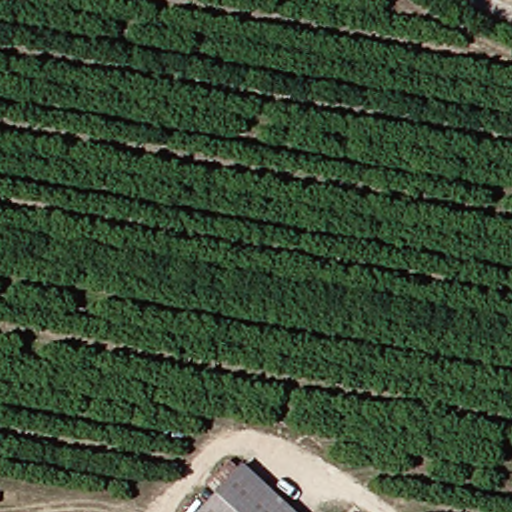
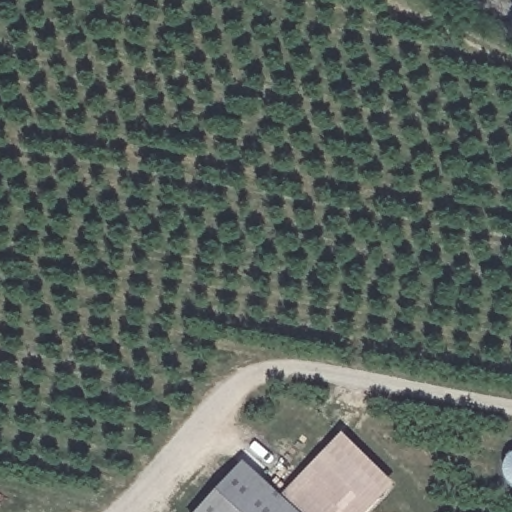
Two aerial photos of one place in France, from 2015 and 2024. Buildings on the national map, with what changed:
new [(341,435),(394,486),(368,512),(300,512),(281,495),(341,435)]
unchanged [(269,485),(300,512),(208,512),(228,490),(249,466),(269,485)]

